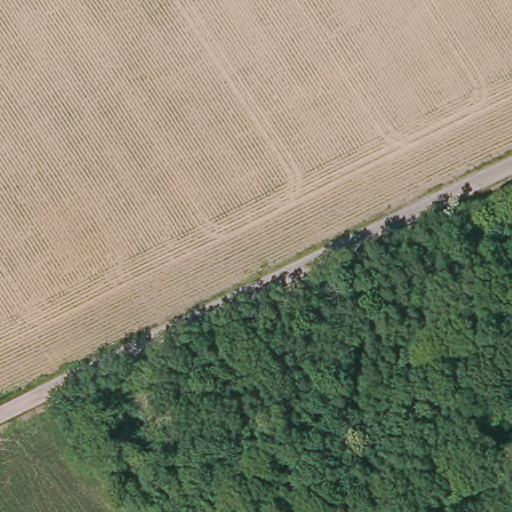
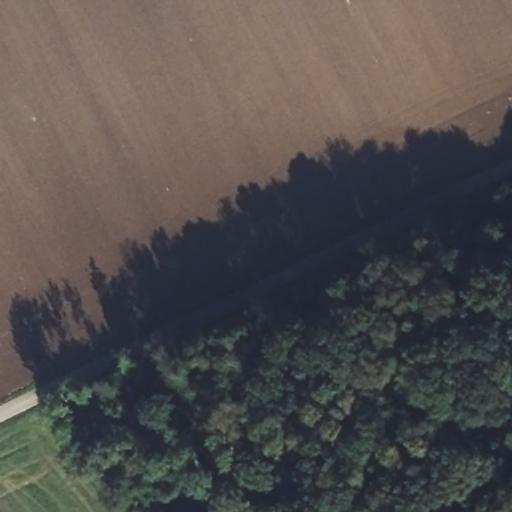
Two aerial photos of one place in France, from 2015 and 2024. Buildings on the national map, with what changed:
[]

